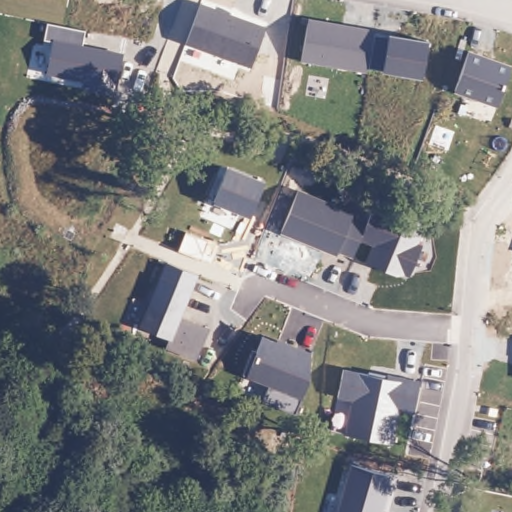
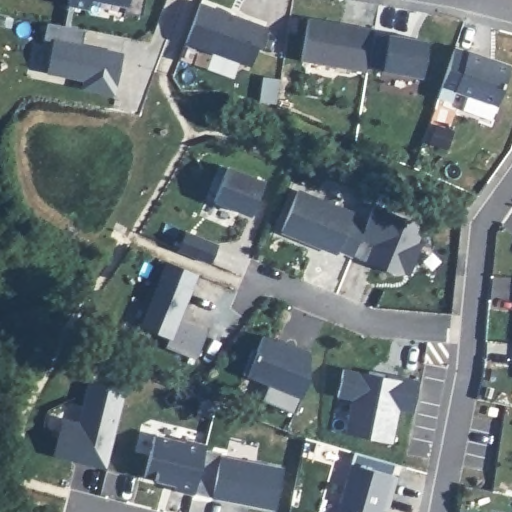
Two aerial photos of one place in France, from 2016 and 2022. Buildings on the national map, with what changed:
unchanged [(89,8),(68,4),(69,0),(91,0),(89,8)]
unchanged [(143,17),(125,13),(126,5),(99,0),(146,0),(143,17)]
unchanged [(187,43),(203,2),(265,26),(252,67),(187,43)]
unchanged [(367,69),(302,59),(309,22),(372,34),(392,37),(429,42),(424,77),(382,71),(367,69)]
unchanged [(83,44),(124,52),(116,96),(82,89),(83,82),(50,76),(55,40),(45,38),(48,24),(86,31),(83,44)]
unchanged [(512,65),(512,67),(499,104),(454,91),(471,51),(512,65)]
unchanged [(230,167),(267,180),(253,218),(214,202),(230,167)]
unchanged [(359,240),(351,258),(281,232),(297,190),(328,202),(332,192),(352,198),(348,207),(370,216),(373,207),(426,224),(420,241),(424,242),(410,279),(366,263),(372,245),(359,240)]
unchanged [(188,231),(221,243),(213,266),(175,251),(188,231)]
unchanged [(195,361),(170,350),(172,338),(138,327),(157,277),(164,261),(198,276),(192,291),(181,317),(208,327),(195,361)]
unchanged [(241,377),(249,351),(258,352),(267,336),(317,356),(300,398),(295,412),(263,400),(269,386),(241,377)]
unchanged [(392,442),(345,433),(352,400),(337,397),(344,368),(422,383),(415,412),(398,410),(392,442)]
new [(63,419),(79,422),(91,376),(126,385),(106,468),(53,455),(63,419)]
new [(155,437),(185,444),(186,438),(206,443),(193,495),(176,491),(178,485),(144,477),(155,437)]
new [(220,455),(283,467),(276,510),(213,497),(220,455)]
unchanged [(336,512),(349,465),(397,479),(389,511),(381,511),(381,512),(336,512)]

